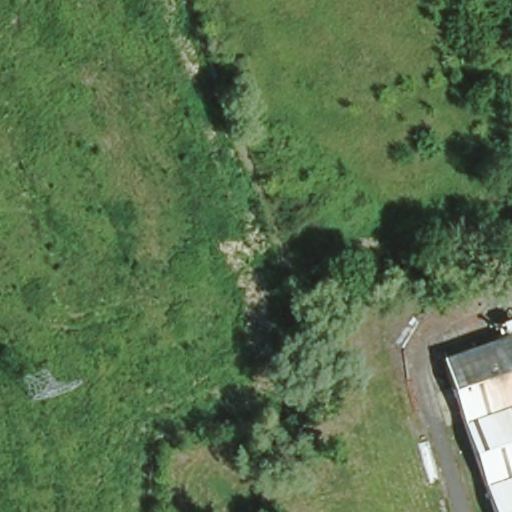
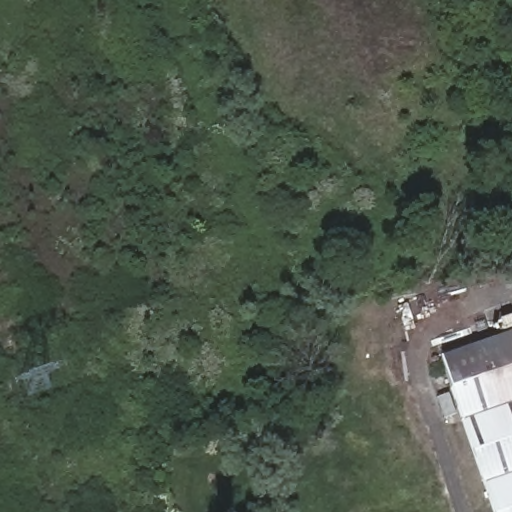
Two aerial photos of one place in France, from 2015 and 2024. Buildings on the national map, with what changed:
unchanged [(491,512),(433,347),(512,319),(512,512),(491,512)]

